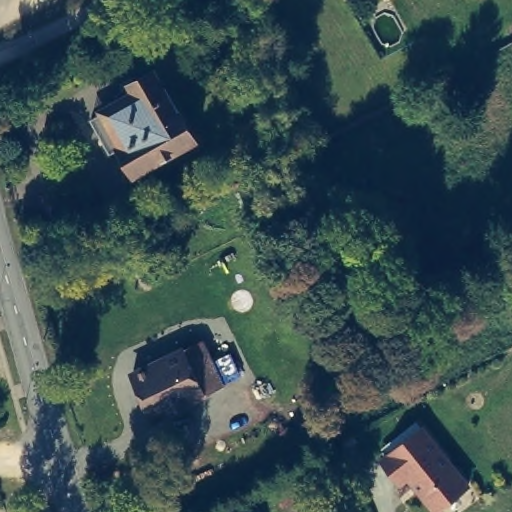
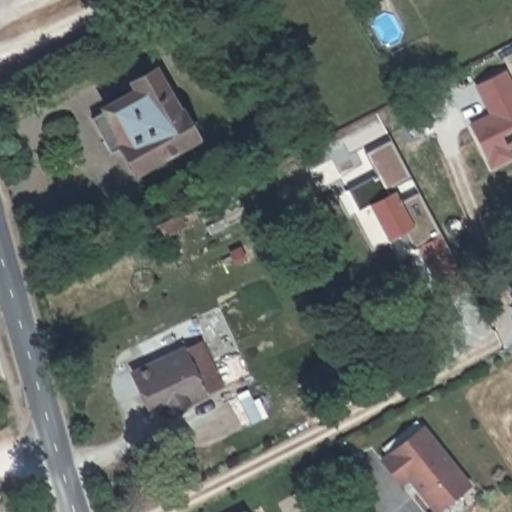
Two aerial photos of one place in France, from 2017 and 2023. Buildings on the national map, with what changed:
unchanged [(140,95),(135,87),(165,72),(187,112),(190,110),(205,135),(144,169),(130,144),(119,149),(102,116),(140,95)]
new [(512,154),(512,161),(492,171),(470,125),(489,116),(475,87),(507,72),(512,81),(512,150),(510,151),(512,154)]
new [(377,175),(366,154),(392,140),(456,262),(433,274),(419,247),(414,250),(405,232),(392,239),(373,204),(360,211),(349,191),(377,175)]
unchanged [(154,417),(131,374),(197,338),(209,361),(215,358),(219,364),(213,368),(220,381),(154,417)]
unchanged [(443,512),(434,512),(410,480),(400,486),(381,458),(423,423),(476,486),(443,512)]

